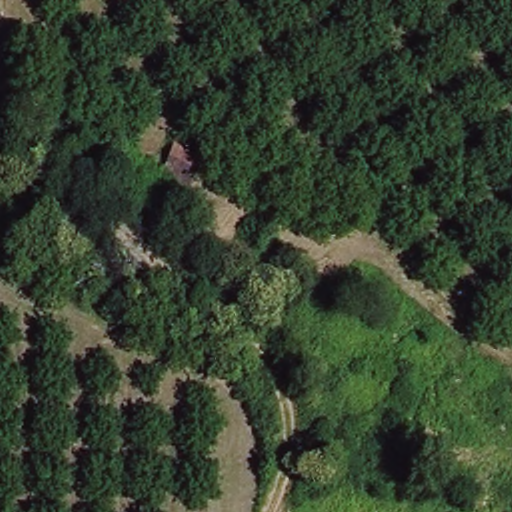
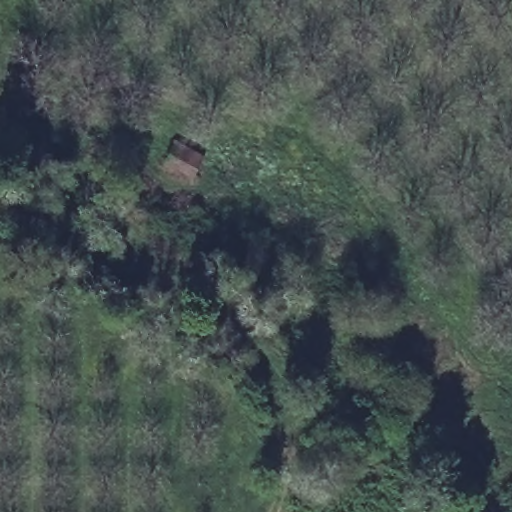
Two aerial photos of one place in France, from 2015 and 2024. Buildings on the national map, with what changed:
unchanged [(165,152),(173,134),(206,149),(195,169),(165,152)]

